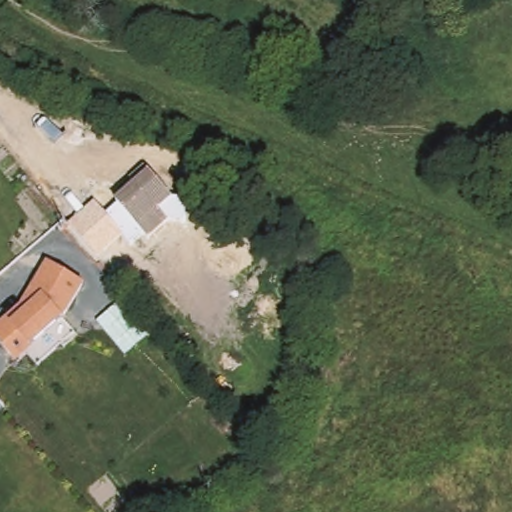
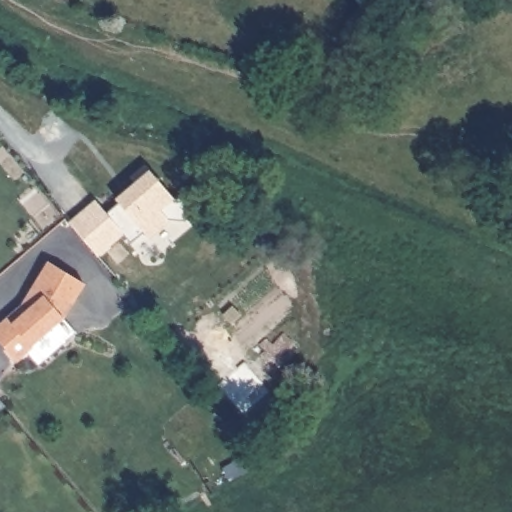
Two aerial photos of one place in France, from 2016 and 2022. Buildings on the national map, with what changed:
unchanged [(95,200),(106,214),(117,201),(114,198),(135,181),(130,177),(145,165),(150,171),(173,198),(187,199),(185,222),(169,221),(147,238),(142,232),(129,244),(122,234),(96,256),(68,223),(95,200)]
unchanged [(20,304),(47,259),(87,282),(64,319),(17,361),(0,342),(0,322),(20,304)]
unchanged [(122,301),(149,335),(125,355),(97,320),(122,301)]

